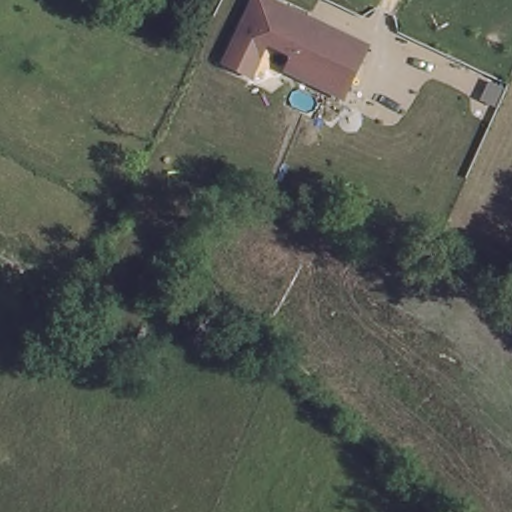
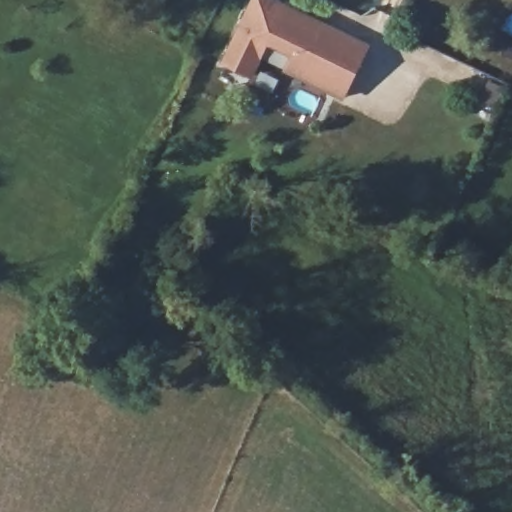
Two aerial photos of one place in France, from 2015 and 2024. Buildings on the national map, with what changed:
unchanged [(369,44),(343,99),(281,74),(289,56),(267,47),(252,79),(218,65),(250,0),(275,0),(369,44)]

